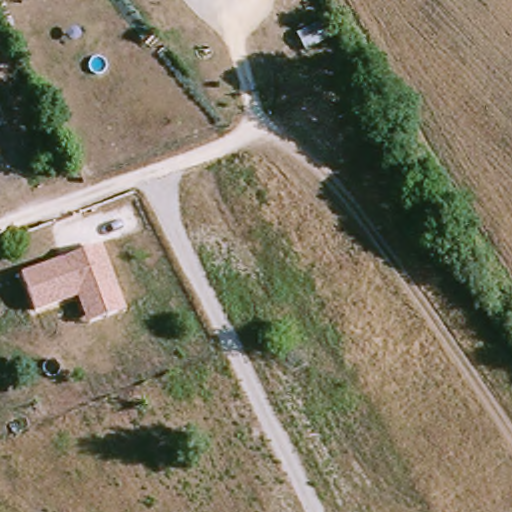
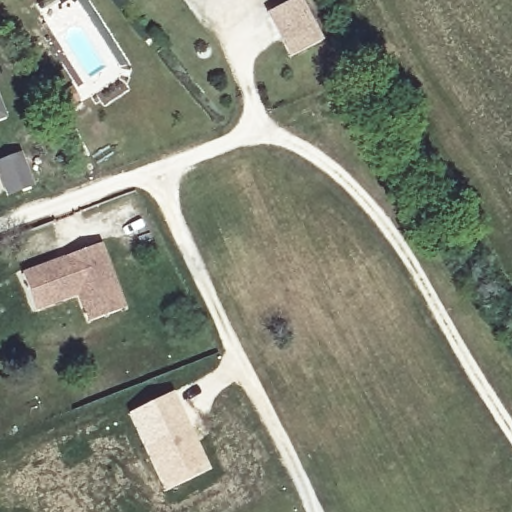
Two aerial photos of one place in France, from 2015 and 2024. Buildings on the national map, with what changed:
new [(301,0),(323,43),(290,59),(267,13),(291,0),(301,0)]
new [(0,119),(0,101),(7,117),(0,119)]
new [(33,184),(4,195),(0,184),(0,161),(22,153),(33,184)]
unchanged [(102,244),(127,309),(87,324),(77,297),(35,312),(21,274),(102,244)]
new [(172,393),(210,468),(167,491),(128,414),(172,393)]

